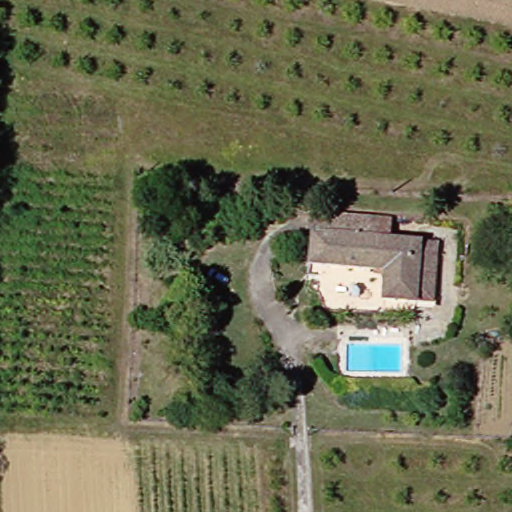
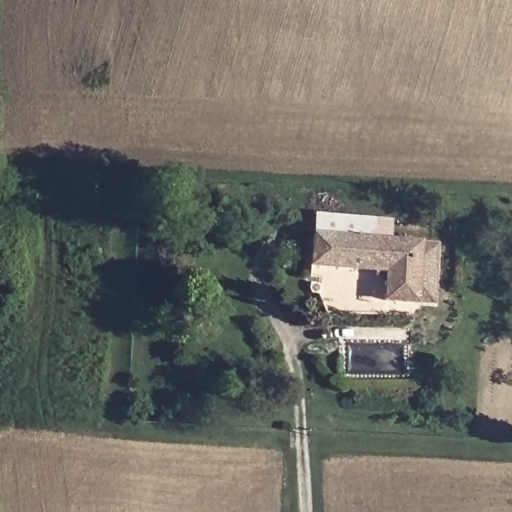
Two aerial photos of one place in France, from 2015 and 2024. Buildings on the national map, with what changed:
unchanged [(379,217),(379,240),(324,238),(326,216),(379,217)]
unchanged [(379,240),(426,242),(447,244),(444,303),(427,302),(426,308),(394,305),(395,276),(322,271),(324,238),(379,240)]

